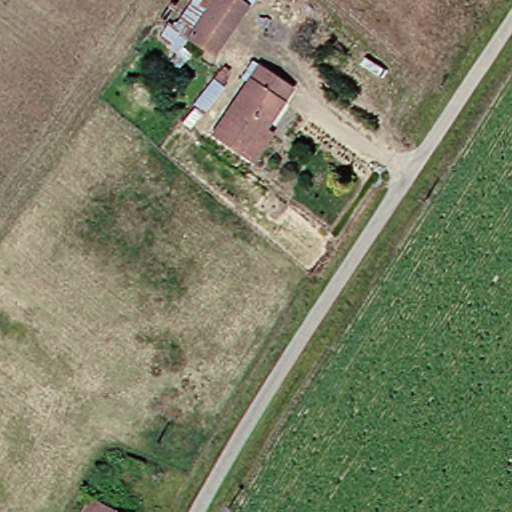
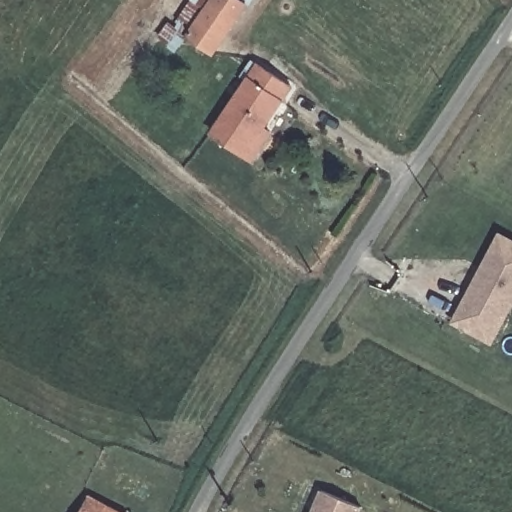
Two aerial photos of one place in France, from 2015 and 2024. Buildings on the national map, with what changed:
unchanged [(184,39),(172,54),(148,36),(158,22),(150,16),(161,0),(163,0),(169,4),(177,10),(185,0),(244,0),(241,4),(243,5),(206,55),(184,39)]
unchanged [(205,125),(223,99),(250,60),(288,86),(260,126),(268,132),(251,157),(227,141),(205,125)]
new [(512,303),(492,341),(455,322),(500,235),(512,241),(512,303)]
new [(359,511),(359,512),(310,512),(318,493),(359,511)]
unchanged [(116,512),(72,512),(82,495),(116,512)]

